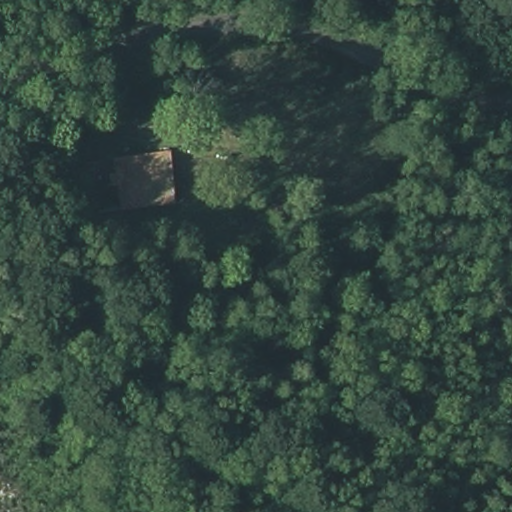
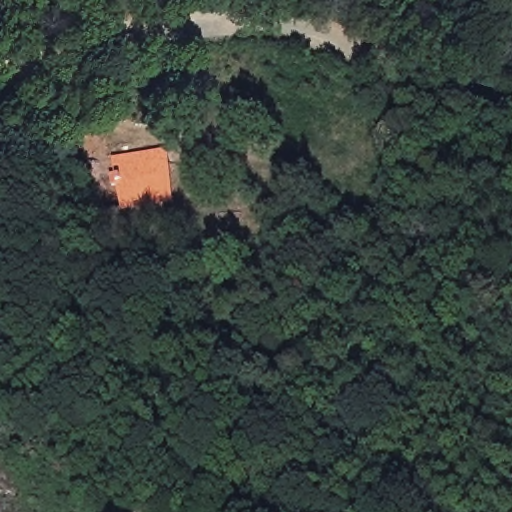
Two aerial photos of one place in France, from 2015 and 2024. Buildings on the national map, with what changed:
unchanged [(168,148),(174,203),(120,208),(112,156),(168,148)]

